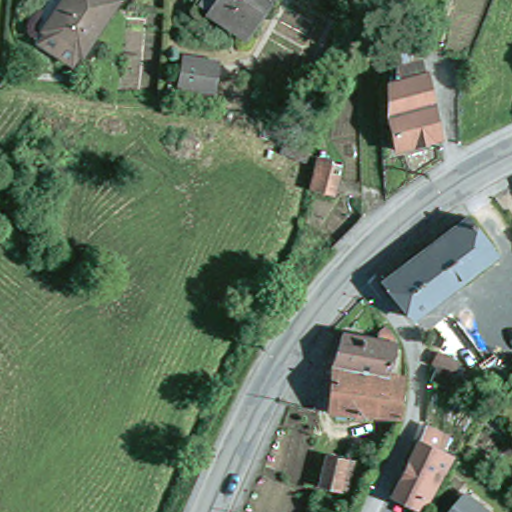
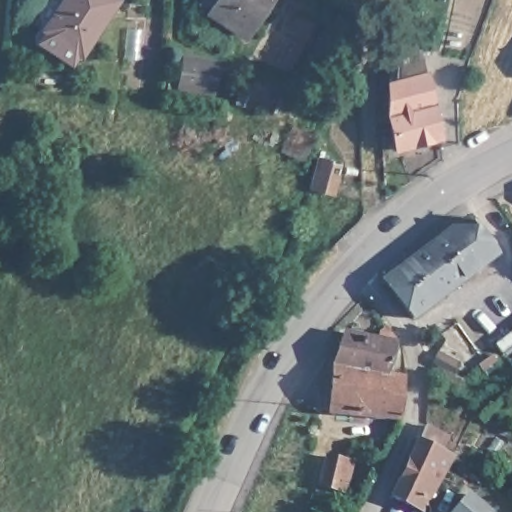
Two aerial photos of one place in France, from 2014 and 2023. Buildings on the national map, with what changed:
unchanged [(84,54),(81,52),(74,64),(43,44),(51,32),(49,30),(69,0),(117,0),(119,2),(84,54)]
unchanged [(248,47),(213,24),(229,0),(279,0),(248,47)]
unchanged [(439,131),(394,143),(387,109),(389,76),(394,74),(397,57),(418,53),(422,67),(424,67),(439,131)]
unchanged [(223,60),(219,90),(186,85),(189,55),(223,60)]
unchanged [(339,166),(336,179),(344,182),(341,197),(316,192),(323,162),(339,166)]
unchanged [(387,281),(471,220),(499,257),(414,318),(387,281)]
unchanged [(333,366),(344,332),(378,340),(379,332),(388,325),(397,336),(395,344),(387,375),(346,367),(333,366)]
unchanged [(497,360),(502,357),(504,355),(504,353),(509,351),(512,348),(512,356),(509,359),(506,361),(504,362),(502,365),(501,365),(497,368),(496,368),(493,372),(489,368),(489,367),(493,363),(497,360)]
unchanged [(444,354),(466,365),(461,377),(439,366),(444,354)]
unchanged [(346,367),(387,375),(407,378),(407,381),(403,420),(329,412),(333,366),(346,367)]
unchanged [(394,500),(426,430),(451,442),(445,454),(456,460),(446,478),(442,487),(431,507),(429,512),(420,512),(418,511),(394,500)]
unchanged [(356,491),(348,489),(326,485),(332,458),(353,462),(360,463),(356,491)]
unchanged [(487,512),(458,512),(469,498),(487,512)]

